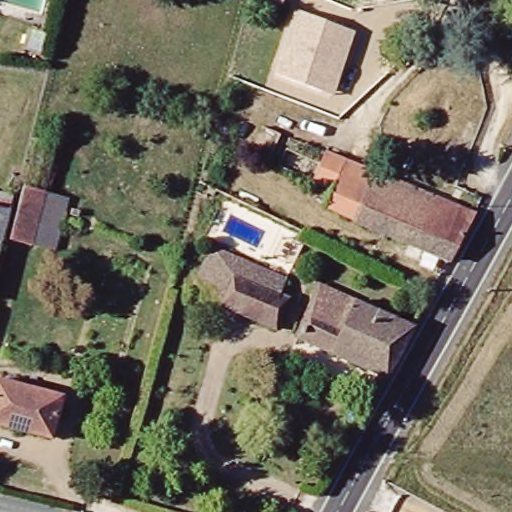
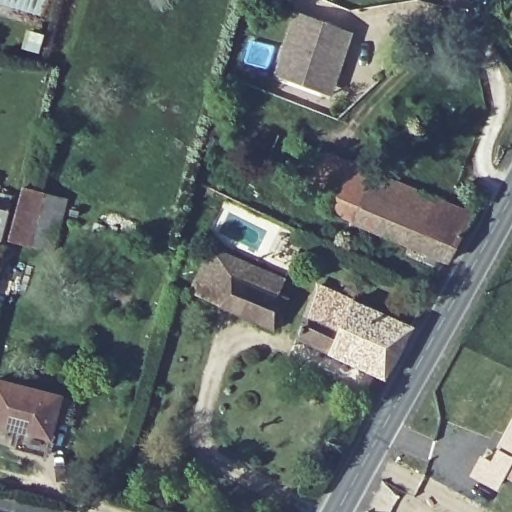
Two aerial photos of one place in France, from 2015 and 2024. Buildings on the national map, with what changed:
unchanged [(259,0),(284,0),(281,9),(259,0)]
unchanged [(274,74),(295,10),(355,32),(334,96),(274,74)]
unchanged [(342,161),(330,189),(253,156),(264,129),(342,161)]
unchanged [(469,218),(448,262),(323,206),(330,189),(342,161),(469,218)]
unchanged [(14,241),(28,188),(68,200),(55,251),(14,241)]
unchanged [(0,236),(0,201),(9,203),(0,236)]
unchanged [(278,330),(192,294),(211,246),(285,275),(276,296),(290,302),(278,330)]
unchanged [(316,298),(321,287),(410,327),(385,377),(300,339),(305,326),(301,321),(310,299),(316,298)]
unchanged [(49,436),(0,424),(0,381),(59,394),(49,436)]
new [(497,487),(474,475),(482,458),(493,464),(512,429),(512,460),(497,487)]
new [(505,473),(512,460),(512,477),(505,473)]

